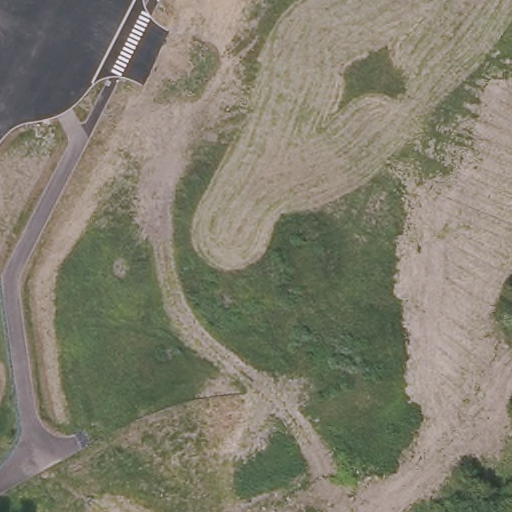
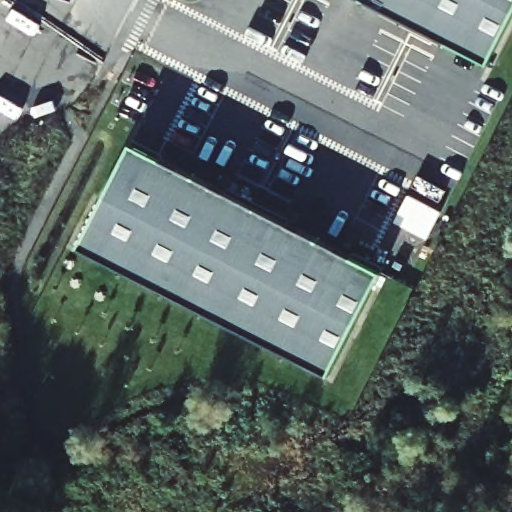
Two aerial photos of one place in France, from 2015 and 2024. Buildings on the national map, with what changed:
new [(491,63),(368,0),(512,0),(512,19),(491,63)]
new [(384,270),(332,375),(79,248),(131,143),(384,270)]

